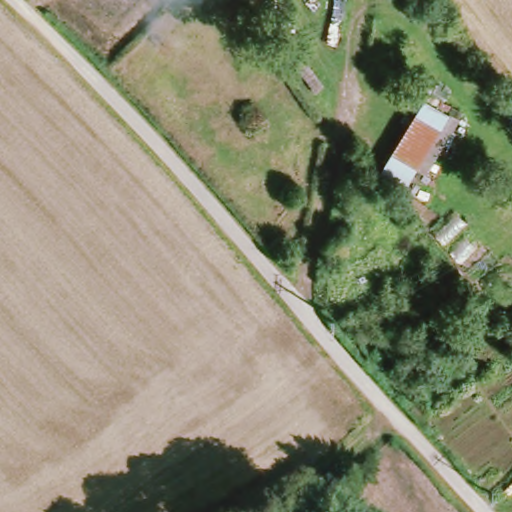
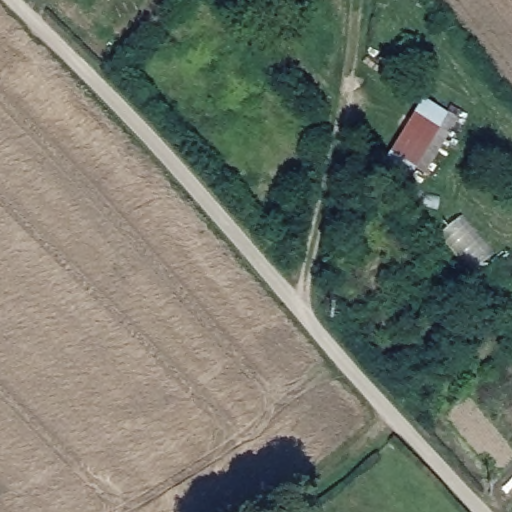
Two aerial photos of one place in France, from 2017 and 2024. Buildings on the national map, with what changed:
unchanged [(457,112),(435,156),(427,157),(400,143),(422,97),(450,111),(457,112)]

